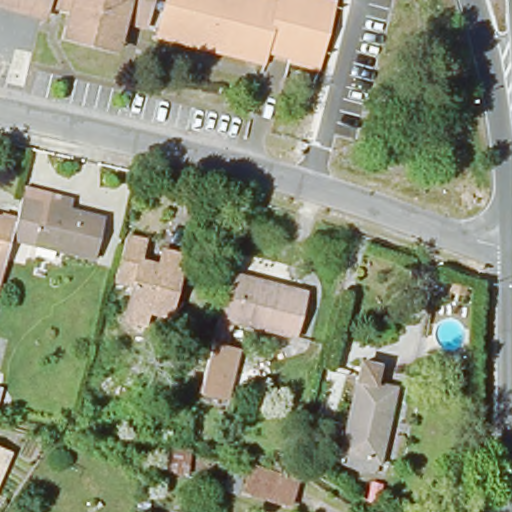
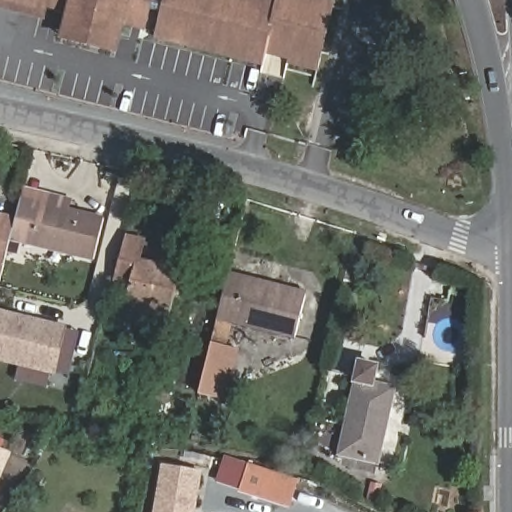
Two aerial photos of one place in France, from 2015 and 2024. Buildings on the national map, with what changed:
unchanged [(49,9),(15,0),(50,0),(49,9)]
unchanged [(71,24),(75,6),(54,0),(155,0),(150,17),(129,11),(123,37),(71,24)]
unchanged [(167,0),(330,0),(332,1),(320,48),(322,48),(317,66),(286,57),(288,51),(291,40),(271,34),(268,45),(265,56),(159,29),(167,0)]
unchanged [(22,198),(104,220),(95,260),(11,240),(16,222),(22,198)]
unchanged [(0,218),(16,222),(11,240),(0,284),(0,218)]
unchanged [(145,242),(140,261),(159,265),(163,250),(184,256),(169,318),(146,312),(143,327),(124,322),(133,287),(114,283),(125,236),(145,242)]
unchanged [(218,318),(229,276),(308,296),(297,338),(218,318)]
new [(0,363),(0,308),(68,325),(56,376),(0,363)]
unchanged [(239,351),(229,401),(202,393),(215,343),(239,351)]
unchanged [(337,464),(340,450),(361,358),(378,362),(374,380),(394,385),(379,459),(376,473),(337,464)]
unchanged [(0,478),(0,449),(10,453),(0,478)]
new [(154,512),(163,464),(204,471),(196,512),(154,512)]
unchanged [(231,465),(249,471),(242,495),(223,490),(231,465)]
unchanged [(245,492),(253,468),(297,482),(289,506),(245,492)]

